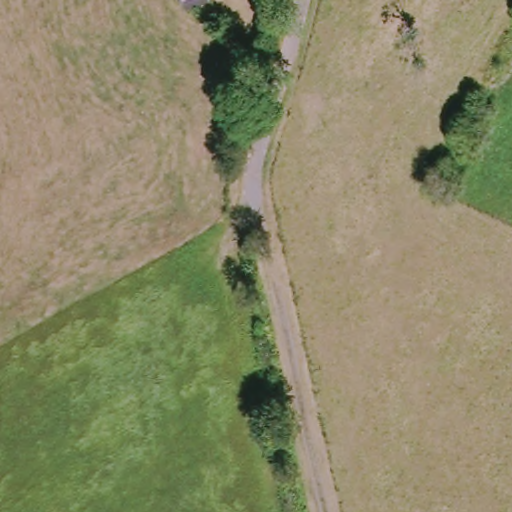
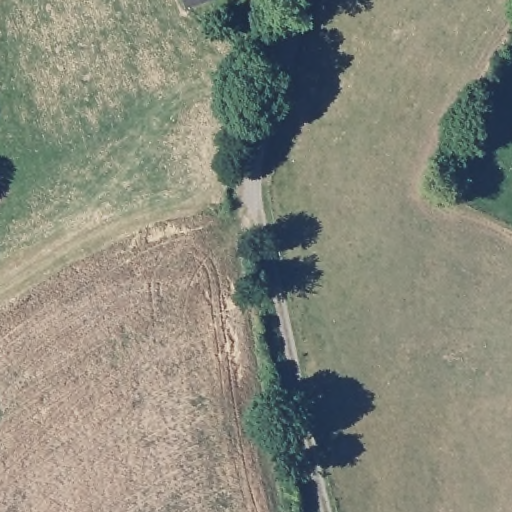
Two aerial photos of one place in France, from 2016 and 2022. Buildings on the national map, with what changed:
unchanged [(180,0),(202,0),(183,7),(180,0)]

